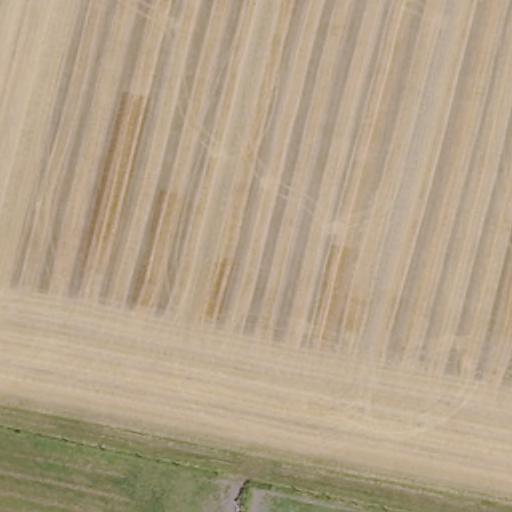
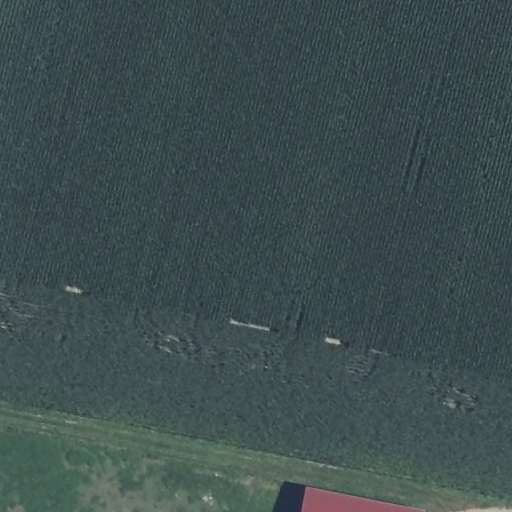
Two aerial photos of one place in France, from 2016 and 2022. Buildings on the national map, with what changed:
new [(305,490),(416,512),(300,512),(305,490)]

